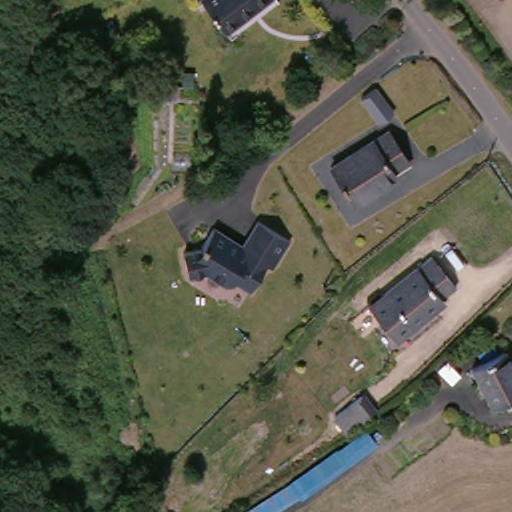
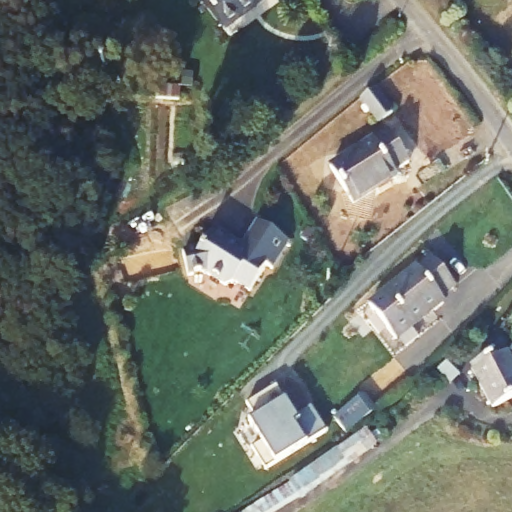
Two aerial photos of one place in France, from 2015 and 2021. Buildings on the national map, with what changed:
unchanged [(225,34),(205,0),(272,0),(273,1),(225,34)]
unchanged [(385,178),(388,181),(355,204),(330,162),(380,130),(367,112),(380,100),(398,124),(389,132),(407,162),(385,178)]
unchanged [(287,243),(270,269),(264,265),(247,290),(232,279),(230,282),(224,283),(204,268),(186,271),(182,247),(202,244),(215,224),(232,237),(234,242),(240,247),(258,221),(287,243)]
unchanged [(455,288),(440,301),(445,307),(399,341),(372,303),(433,256),(455,288)]
unchanged [(512,400),(495,409),(475,366),(505,349),(512,364),(512,400)]
new [(275,386),(285,399),(295,413),(310,403),(327,429),(307,443),(276,461),(265,467),(254,447),(263,442),(250,419),(257,416),(248,403),(275,386)]
unchanged [(342,427),(332,409),(361,388),(372,407),(342,427)]
unchanged [(383,444),(282,512),(238,512),(367,421),(383,444)]

